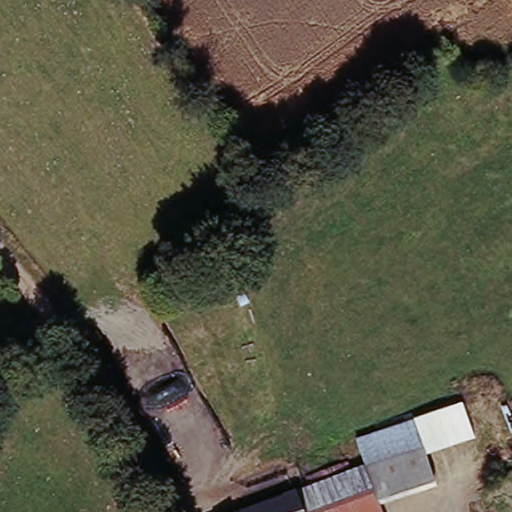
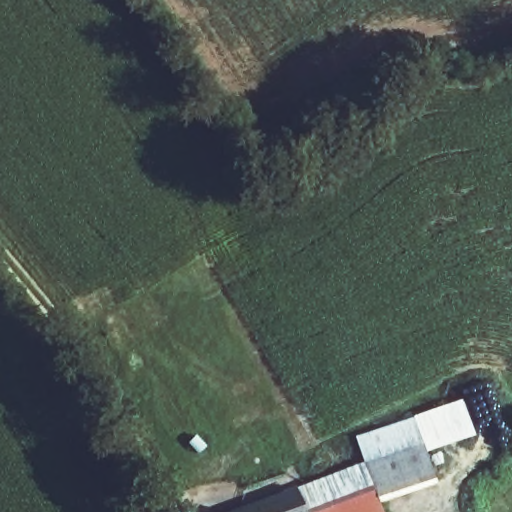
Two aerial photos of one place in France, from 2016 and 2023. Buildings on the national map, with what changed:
unchanged [(355,462),(363,459),(357,438),(459,402),(473,434),(425,451),(433,483),(373,504),(355,462)]
unchanged [(288,491),(318,478),(355,462),(373,504),(376,512),(297,512),(288,491)]
unchanged [(297,512),(241,512),(288,491),(297,512)]

